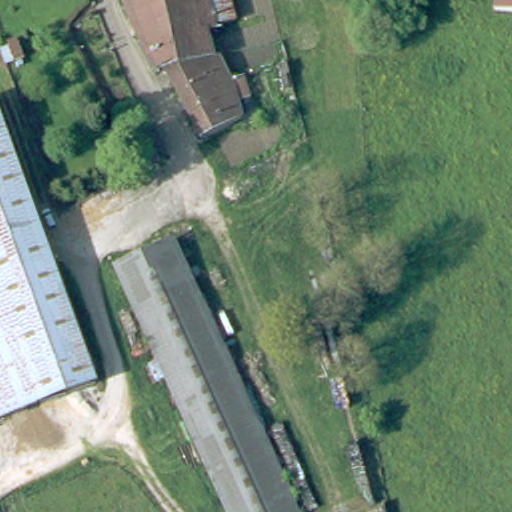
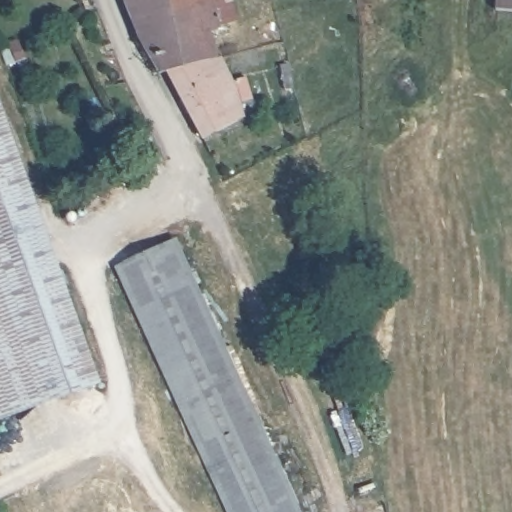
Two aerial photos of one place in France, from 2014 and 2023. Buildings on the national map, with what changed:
unchanged [(212,35),(221,61),(171,74),(161,76),(130,21),(124,0),(234,0),(235,2),(242,27),(221,33),(212,35)]
unchanged [(500,8),(500,0),(512,0),(512,9),(500,8)]
unchanged [(203,138),(171,74),(221,61),(224,60),(233,86),(240,85),(244,95),(237,97),(245,117),(203,138)]
unchanged [(45,214),(46,217),(38,222),(37,217),(0,239),(0,97),(4,95),(45,214)]
unchanged [(155,131),(166,157),(148,165),(137,140),(155,131)]
unchanged [(38,222),(94,380),(0,413),(0,239),(37,217),(38,222)]
unchanged [(180,241),(228,346),(221,349),(223,353),(185,370),(181,364),(161,322),(161,320),(133,263),(180,241)]
unchanged [(150,316),(151,318),(175,366),(181,364),(185,370),(223,353),(287,491),(297,512),(229,512),(113,263),(122,259),(150,316)]

